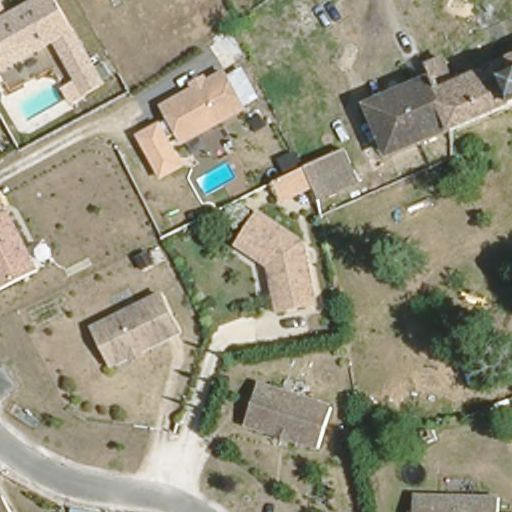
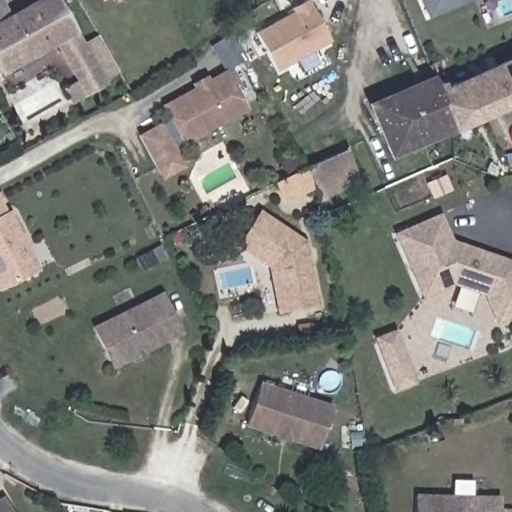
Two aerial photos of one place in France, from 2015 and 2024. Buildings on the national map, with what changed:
unchanged [(39,0),(51,0),(101,84),(84,94),(52,41),(0,72),(0,23),(39,0)]
new [(418,0),(471,0),(426,18),(418,0)]
new [(297,14),(295,11),(312,1),(334,43),(281,72),(260,35),(297,14)]
unchanged [(380,96),(417,79),(430,73),(424,59),(439,52),(452,79),(512,51),(512,100),(452,125),(402,146),(392,122),(380,96)]
unchanged [(249,111),(182,146),(176,134),(171,136),(186,166),(162,179),(137,133),(169,117),(162,103),(192,86),(191,83),(210,73),(212,76),(226,68),(249,111)]
new [(392,122),(402,146),(385,153),(363,103),(380,96),(392,122)]
unchanged [(361,182),(318,201),(312,191),(282,204),(268,179),(342,144),(361,182)]
unchanged [(0,286),(0,195),(7,209),(36,268),(0,286)]
unchanged [(293,240),(307,301),(267,309),(257,262),(229,241),(249,211),(293,240)]
new [(452,240),(512,261),(512,316),(495,323),(483,294),(452,284),(421,298),(392,233),(439,212),(452,240)]
unchanged [(124,365),(120,358),(102,367),(82,329),(150,294),(170,332),(132,351),(137,357),(124,365)]
new [(416,382),(393,391),(372,338),(393,329),(416,382)]
unchanged [(325,405),(313,443),(237,420),(250,381),(325,405)]
unchanged [(405,495),(489,499),(488,512),(404,512),(405,495)]
unchanged [(5,512),(0,512),(0,504),(5,512)]

